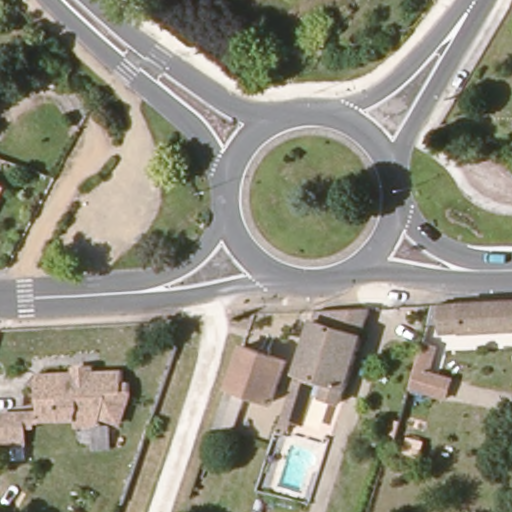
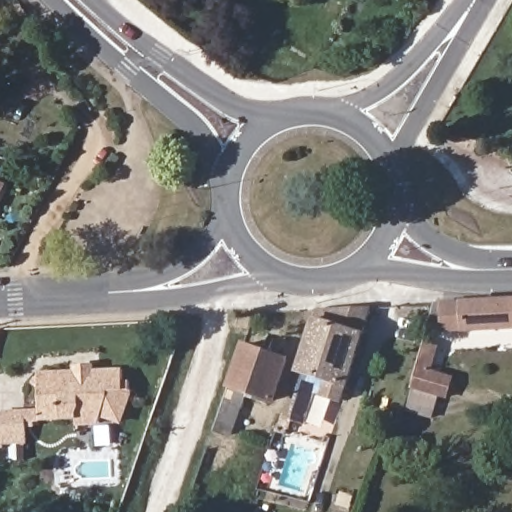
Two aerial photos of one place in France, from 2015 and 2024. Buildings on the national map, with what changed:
unchanged [(0,195),(0,184),(5,187),(0,195)]
unchanged [(512,304),(512,332),(447,334),(447,320),(438,320),(440,308),(512,304)]
unchanged [(367,337),(349,385),(339,406),(318,398),(307,427),(292,425),(287,442),(276,434),(287,398),(294,400),(303,376),(293,371),(311,316),(314,306),(376,307),(367,337)]
unchanged [(441,347),(432,372),(455,377),(448,400),(411,390),(425,342),(441,347)]
unchanged [(287,358),(274,400),(245,390),(231,434),(215,429),(244,345),(287,358)]
unchanged [(38,371),(122,366),(124,378),(133,377),(133,390),(128,408),(117,409),(111,420),(92,421),(92,412),(42,414),(38,371)]
unchanged [(37,421),(27,422),(27,442),(0,444),(0,404),(37,403),(37,421)]

